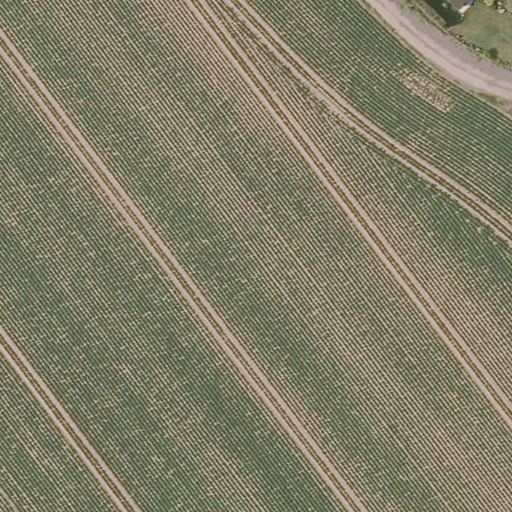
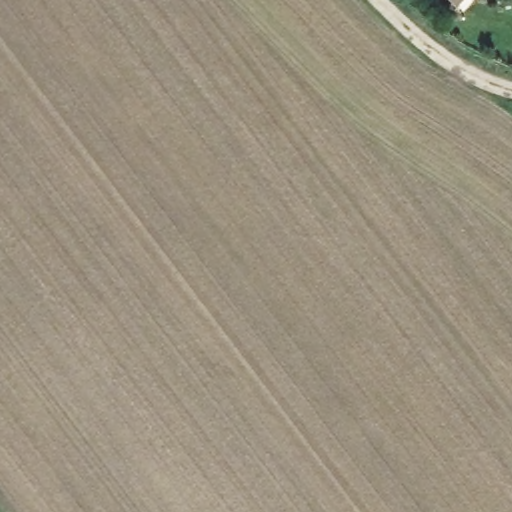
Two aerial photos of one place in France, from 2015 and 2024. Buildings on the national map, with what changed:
unchanged [(442,0),(474,0),(460,16),(442,0)]

